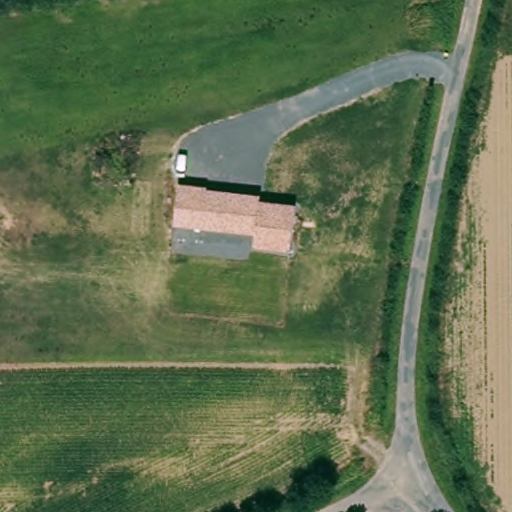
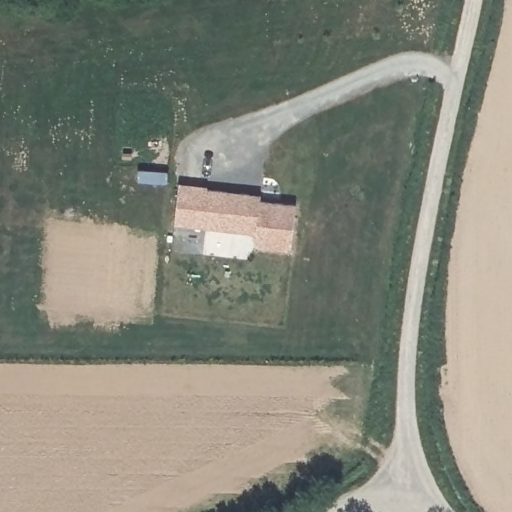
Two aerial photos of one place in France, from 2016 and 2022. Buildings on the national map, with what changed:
unchanged [(291,251),(253,248),(255,235),(174,225),(178,184),(208,188),(208,190),(260,195),(261,201),(296,205),(291,251)]

